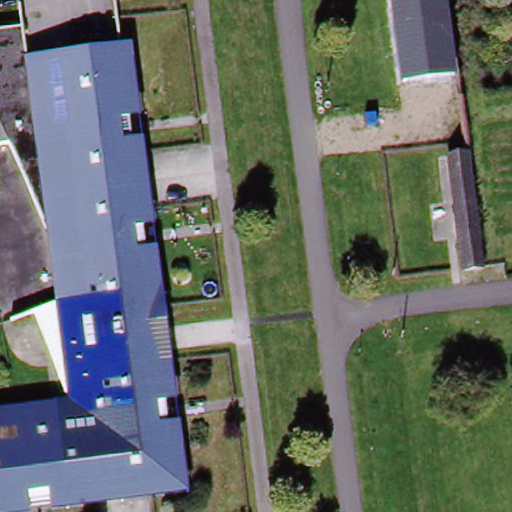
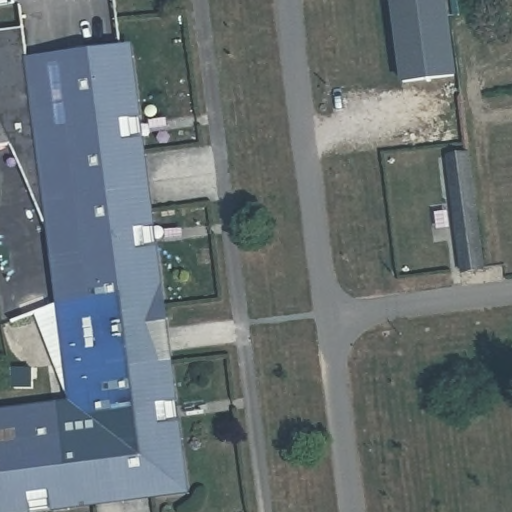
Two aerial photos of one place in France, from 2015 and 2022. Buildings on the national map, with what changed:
unchanged [(441,0),(451,75),(399,81),(389,0),(441,0)]
unchanged [(25,23),(30,65),(54,61),(58,90),(68,89),(63,60),(126,52),(134,114),(121,115),(124,135),(137,134),(142,172),(88,179),(90,189),(144,182),(149,223),(136,225),(138,244),(151,242),(159,304),(145,307),(156,332),(118,348),(123,361),(168,355),(173,396),(159,397),(163,419),(176,417),(185,480),(121,490),(113,438),(102,440),(108,490),(57,496),(55,482),(31,485),(33,500),(0,504),(0,417),(66,410),(68,414),(81,411),(39,308),(76,292),(69,273),(38,197),(15,143),(0,117),(0,26),(25,23)]
unchanged [(15,143),(0,145),(0,117),(15,143)]
unchanged [(446,155),(469,152),(484,268),(461,272),(446,155)]

